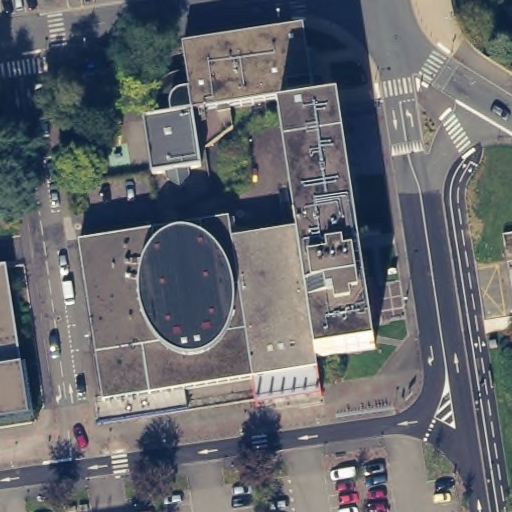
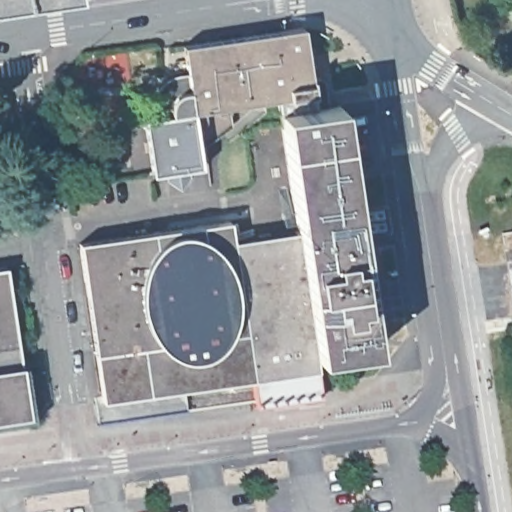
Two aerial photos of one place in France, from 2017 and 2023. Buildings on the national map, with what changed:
unchanged [(280,114),(277,100),(193,113),(184,45),(304,28),(312,78),(317,77),(320,78),(323,79),(325,82),(328,106),(280,114)]
unchanged [(315,356),(297,230),(280,114),(328,106),(340,104),(350,174),(375,350),(320,359),(315,356)]
unchanged [(202,167),(189,169),(190,177),(167,180),(167,173),(153,174),(145,119),(193,113),(202,167)]
unchanged [(103,397),(87,295),(80,243),(230,220),(232,240),(297,230),(315,356),(320,359),(316,359),(318,370),(320,384),(321,395),(317,392),(260,401),(257,405),(255,394),(252,379),(185,390),(187,404),(188,411),(100,424),(95,398),(100,397),(103,397)]
unchanged [(512,286),(509,266),(512,266),(512,286)]
unchanged [(30,417),(0,421),(0,268),(6,267),(30,417)]

